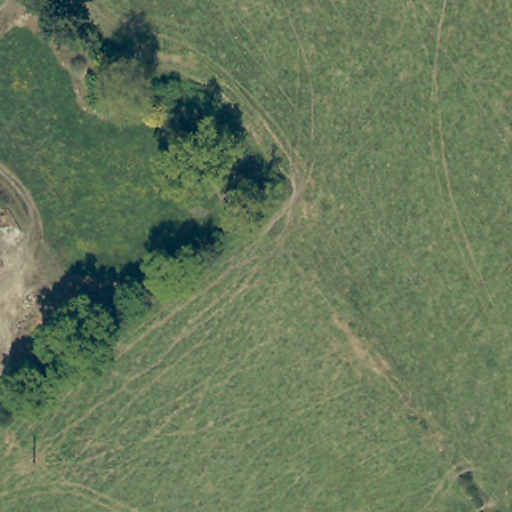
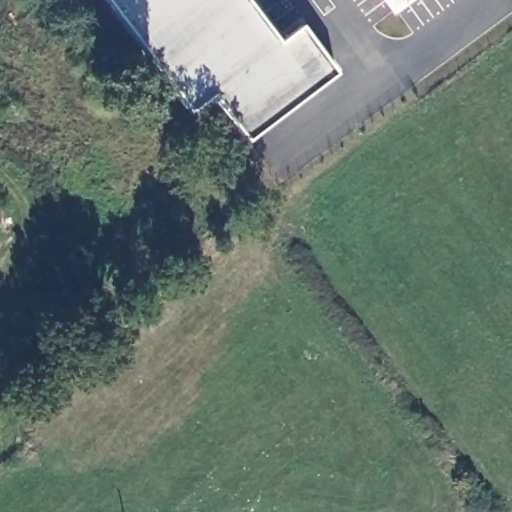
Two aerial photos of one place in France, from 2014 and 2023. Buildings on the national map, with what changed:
new [(303,26),(336,75),(248,142),(214,95),(193,111),(109,0),(248,0),(281,43),(303,26)]
new [(401,0),(398,3),(395,0),(401,0)]

